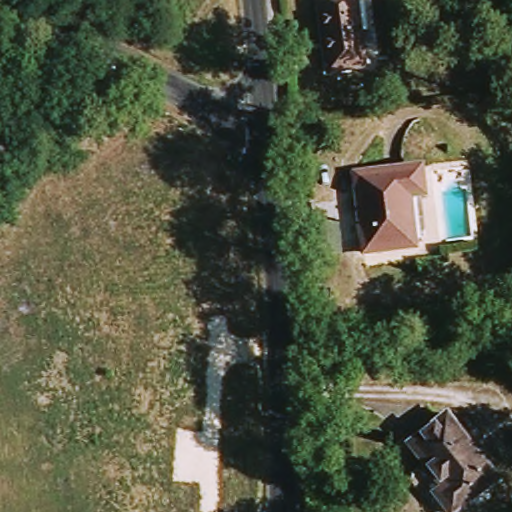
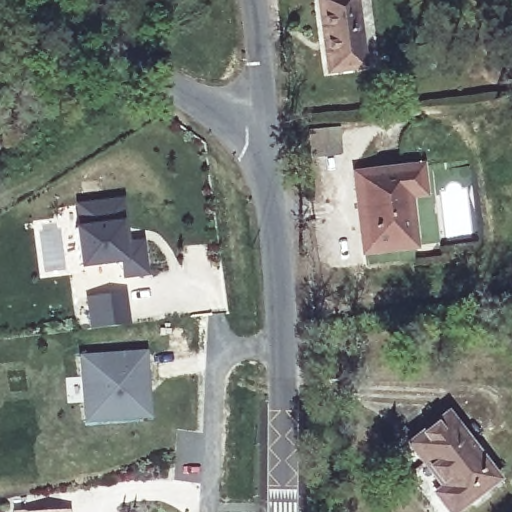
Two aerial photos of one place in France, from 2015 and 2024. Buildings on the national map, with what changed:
unchanged [(357,0),(365,68),(329,73),(320,0),(357,0)]
unchanged [(421,166),(425,196),(410,198),(416,248),(364,254),(355,175),(421,166)]
new [(122,279),(119,265),(78,269),(74,227),(75,227),(75,205),(125,198),(130,241),(145,240),(148,276),(122,279)]
new [(89,329),(85,298),(125,293),(130,324),(89,329)]
new [(84,424),(79,355),(147,351),(151,419),(84,424)]
unchanged [(457,512),(447,512),(433,494),(441,488),(407,445),(446,415),(497,480),(457,512)]
new [(71,510),(72,512),(12,512),(71,510)]

